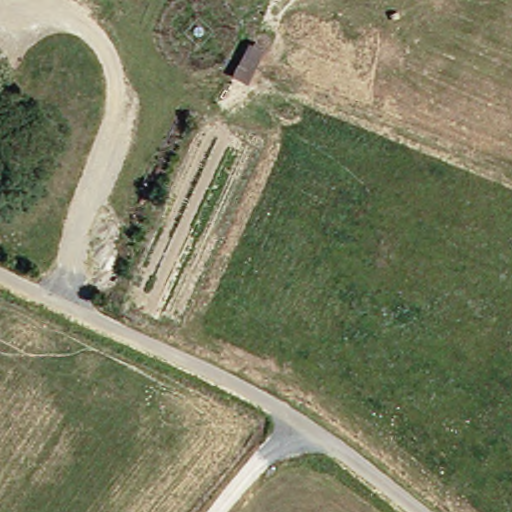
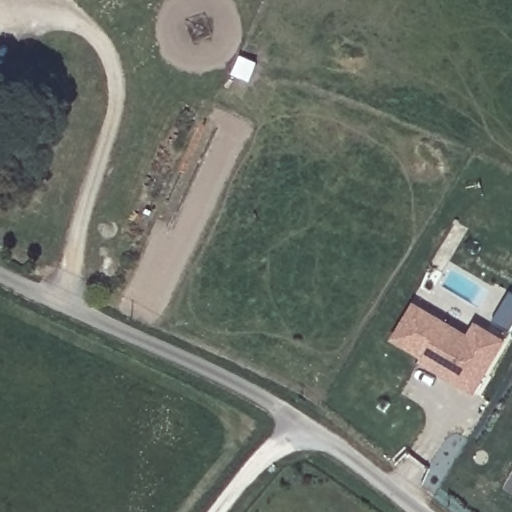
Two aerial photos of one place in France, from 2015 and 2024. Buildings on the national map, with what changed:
new [(392,338),(412,305),(466,336),(474,324),(501,341),(472,391),(426,365),(419,360),(422,357),(392,338)]

